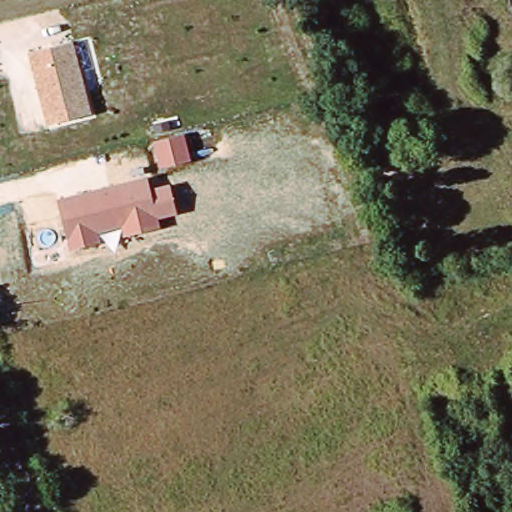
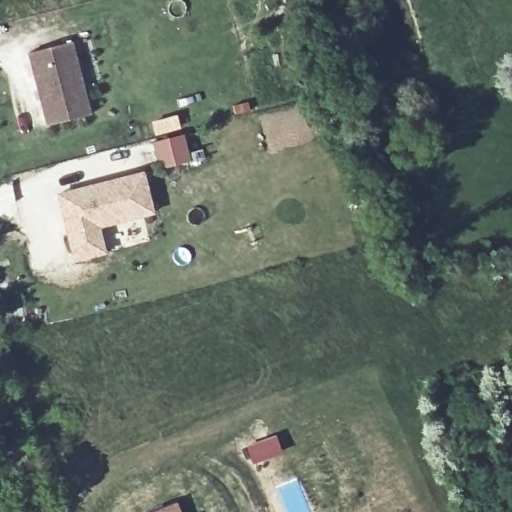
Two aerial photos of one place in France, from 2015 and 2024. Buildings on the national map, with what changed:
unchanged [(72,40),(92,112),(46,125),(27,54),(72,40)]
unchanged [(184,135),(190,161),(160,169),(153,141),(184,135)]
unchanged [(176,214),(159,218),(160,227),(123,236),(121,228),(99,234),(101,241),(70,250),(56,200),(147,177),(150,188),(170,184),(176,214)]
new [(275,435),(281,452),(252,464),(245,446),(275,435)]
new [(176,501),(181,512),(147,512),(176,501)]

